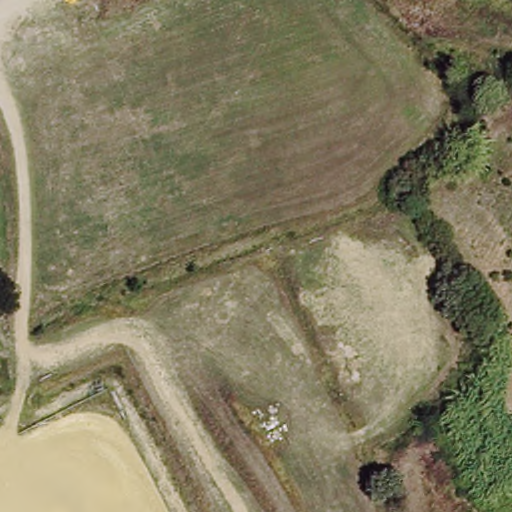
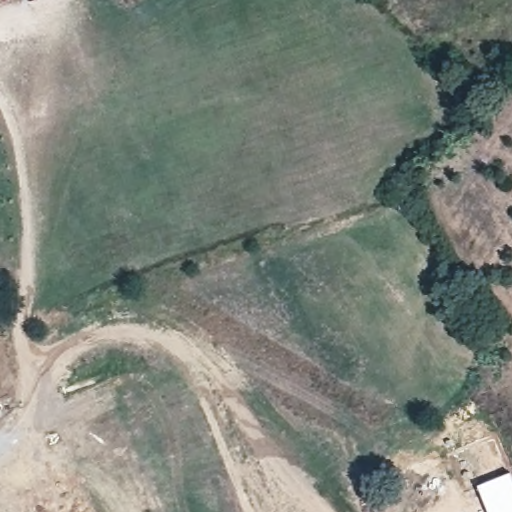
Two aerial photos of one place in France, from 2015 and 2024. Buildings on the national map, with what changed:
new [(512,475),(512,512),(487,512),(477,485),(511,471),(512,475)]

